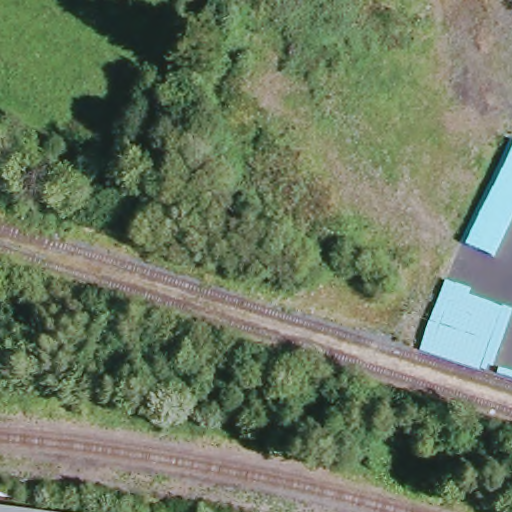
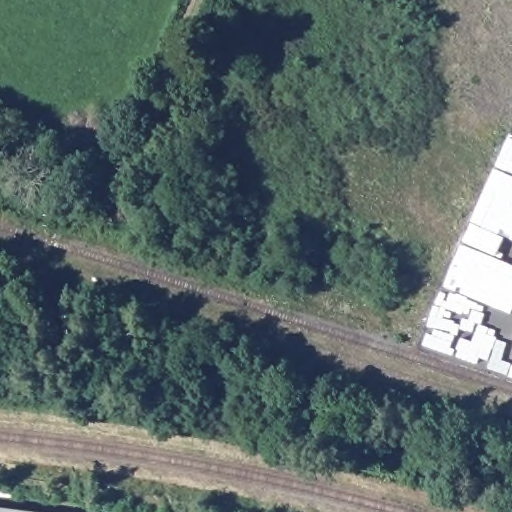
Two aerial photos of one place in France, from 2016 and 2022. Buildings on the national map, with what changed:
unchanged [(12,512),(0,512),(0,510),(12,512)]

